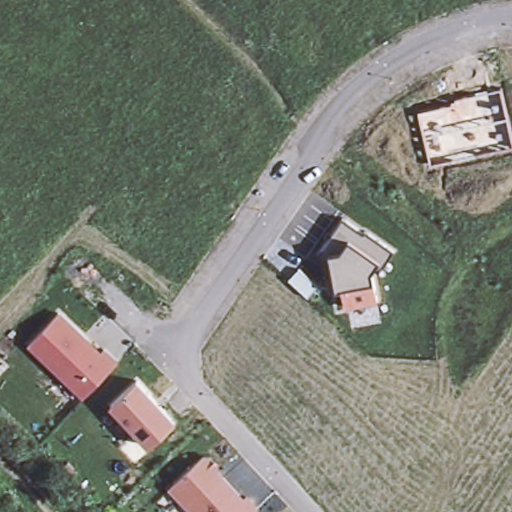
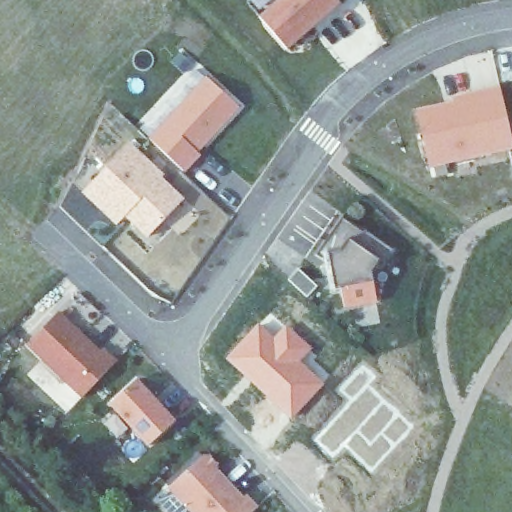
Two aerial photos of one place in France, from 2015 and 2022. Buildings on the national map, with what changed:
new [(342,4),(287,51),(257,18),(278,0),(338,0),(342,4)]
new [(240,108),(198,153),(201,156),(185,173),(147,139),(205,76),(240,108)]
unchanged [(512,140),(512,147),(430,163),(418,109),(500,88),(512,140)]
new [(163,175),(160,178),(183,201),(148,236),(126,214),(130,210),(118,199),(106,211),(84,190),(128,143),(163,175)]
unchanged [(364,232),(365,230),(395,250),(382,270),(377,267),(372,274),(378,307),(343,312),(339,289),(333,290),(329,265),(318,256),(342,218),(364,232)]
unchanged [(102,351),(105,349),(118,361),(82,401),(27,348),(60,312),(102,351)]
new [(274,340),(287,326),(310,348),(298,363),(322,384),(293,418),(230,358),(258,326),(274,340)]
new [(375,378),(367,386),(412,428),(370,472),(345,446),(333,458),(316,440),(353,399),(341,389),(363,367),(375,378)]
unchanged [(164,418),(137,442),(98,399),(125,375),(164,418)]
unchanged [(233,496),(237,494),(248,506),(242,512),(186,512),(160,484),(192,453),(198,453),(207,462),(207,468),(213,475),(233,496)]

